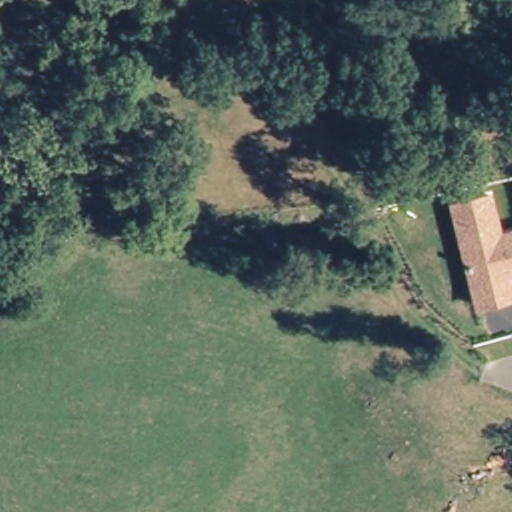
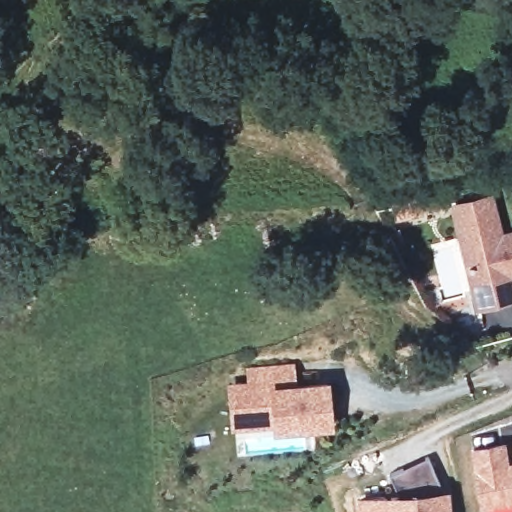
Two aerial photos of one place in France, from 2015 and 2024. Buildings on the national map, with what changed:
unchanged [(471,284),(451,208),(489,199),(499,238),(512,235),(512,275),(510,275),(512,284),(512,296),(477,304),(471,284)]
new [(231,399),(231,389),(250,388),(250,373),(291,369),(291,372),(292,389),(326,387),(326,390),(319,391),(322,423),(323,427),(275,430),(274,426),(234,429),(231,399)]
new [(508,464),(512,463),(512,503),(478,509),(470,448),(506,442),(508,464)]
new [(443,490),(449,489),(450,512),(357,512),(356,496),(401,494),(388,474),(426,457),(443,490)]

